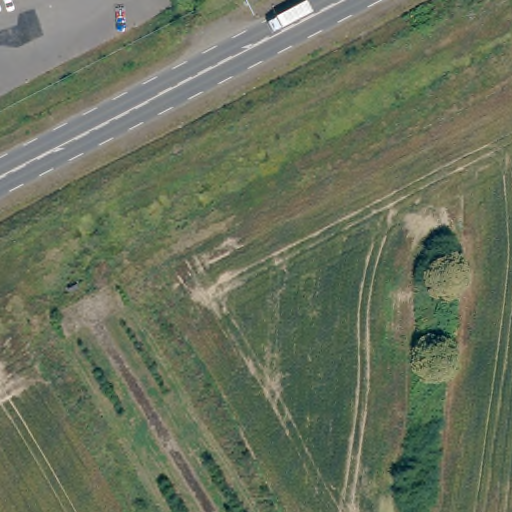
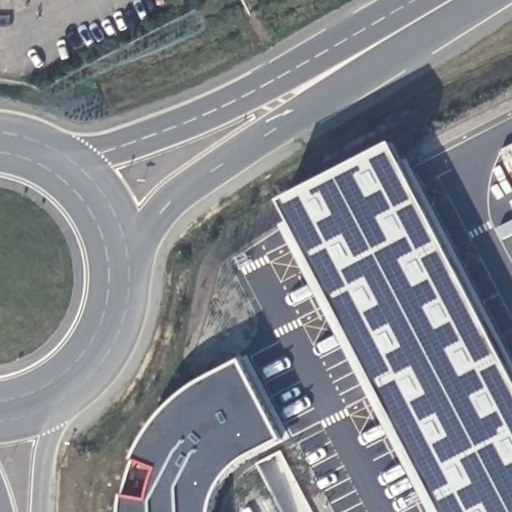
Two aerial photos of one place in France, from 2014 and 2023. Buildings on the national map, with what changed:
new [(444,512),(283,201),(395,144),(512,369),(512,512),(444,512)]
new [(137,460),(147,439),(156,426),(176,403),(188,393),(206,380),(245,360),(287,440),(249,460),(236,471),(230,479),(224,488),(220,496),(216,510),(216,512),(125,512),(127,495),(137,460)]

